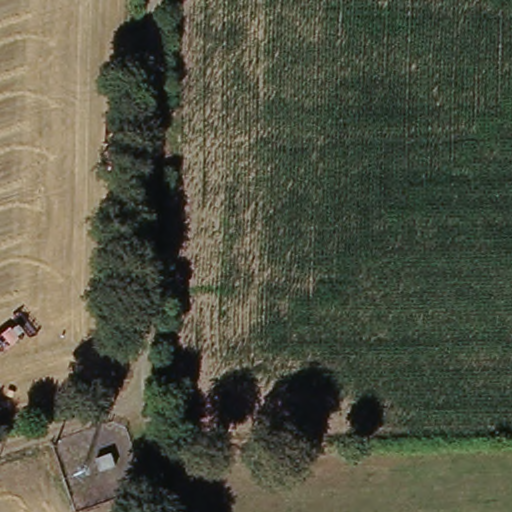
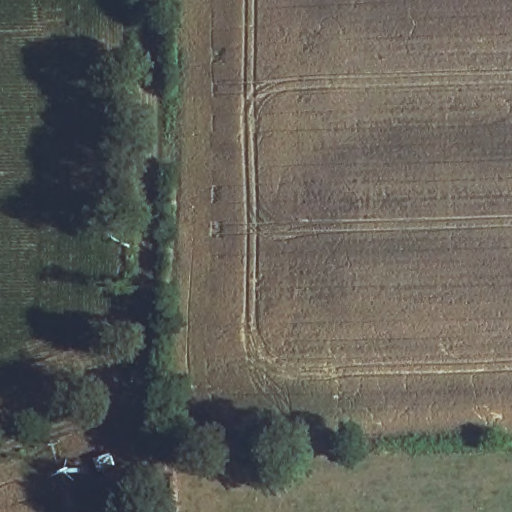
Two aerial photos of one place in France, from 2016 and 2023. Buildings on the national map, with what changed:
unchanged [(122,472),(102,478),(99,464),(119,458),(122,472)]

